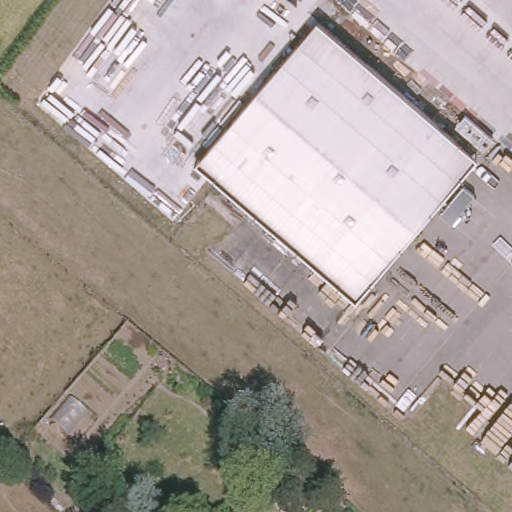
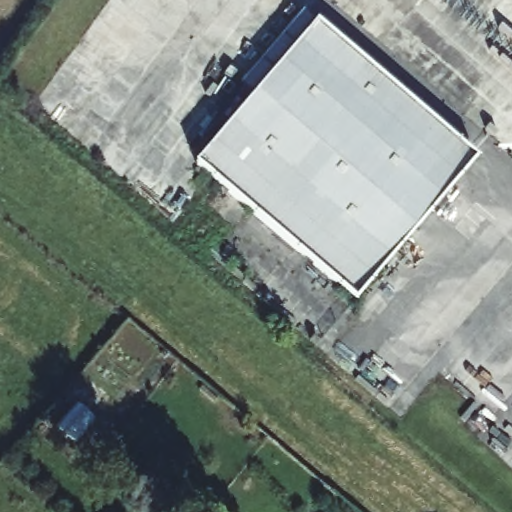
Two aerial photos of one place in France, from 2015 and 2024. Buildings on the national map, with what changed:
unchanged [(457,185),(355,305),(249,214),(184,157),(195,145),(206,155),(233,124),(245,110),(226,92),(297,10),(457,148),(475,163),(457,185)]

